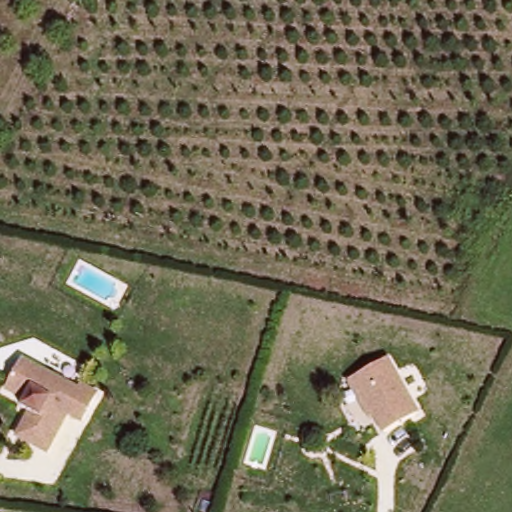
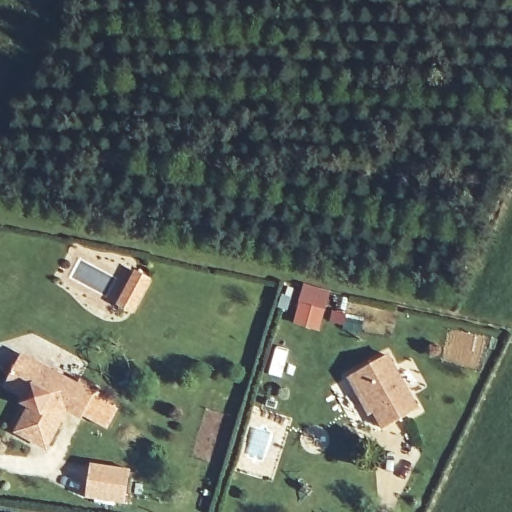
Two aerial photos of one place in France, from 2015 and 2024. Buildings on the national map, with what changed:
new [(293,323),(299,302),(304,285),(330,291),(325,309),(319,331),(293,323)]
unchanged [(27,396),(7,384),(23,353),(80,383),(81,378),(98,388),(84,416),(69,408),(48,447),(19,432),(32,408),(24,403),(27,396)]
unchanged [(360,392),(351,377),(389,355),(421,410),(387,428),(377,412),(373,415),(360,392)]
new [(131,468),(125,503),(85,498),(90,463),(131,468)]

